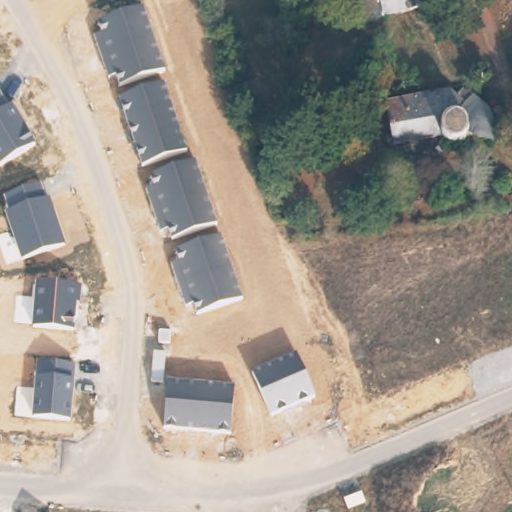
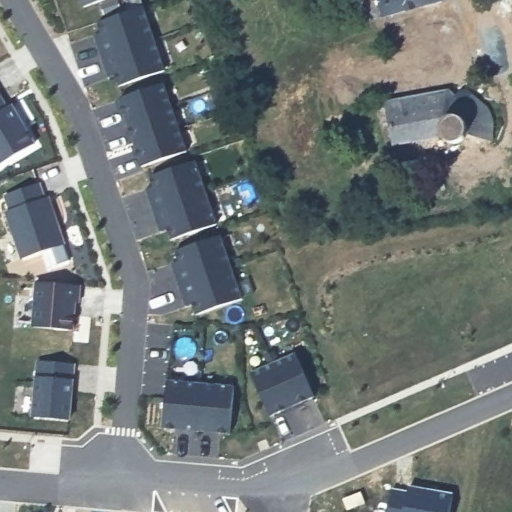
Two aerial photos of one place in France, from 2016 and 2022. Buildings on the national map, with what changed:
unchanged [(82,6),(80,0),(99,0),(82,6)]
unchanged [(358,24),(350,0),(413,0),(415,7),(358,24)]
unchanged [(413,0),(437,0),(415,7),(413,0)]
unchanged [(100,33),(97,25),(145,9),(162,69),(117,85),(114,77),(109,79),(95,36),(100,33)]
unchanged [(469,138),(463,144),(452,145),(441,135),(391,144),(384,98),(451,85),(460,94),(466,82),(475,92),(491,99),(495,138),(469,138)]
unchanged [(164,85),(184,152),(141,166),(120,100),(164,85)]
unchanged [(13,103),(34,143),(0,162),(0,95),(7,107),(13,103)]
unchanged [(154,186),(151,178),(196,162),(215,224),(170,240),(167,230),(160,233),(146,190),(154,186)]
unchanged [(40,182),(46,199),(51,199),(66,243),(21,260),(5,209),(9,207),(5,195),(40,182)]
unchanged [(170,262),(178,259),(176,253),(220,238),(240,299),(196,315),(191,303),(185,307),(170,262)]
unchanged [(36,283),(80,287),(72,329),(32,327),(36,283)]
unchanged [(252,373),(293,354),(313,398),(270,416),(252,373)]
unchanged [(73,365),(70,420),(33,418),(36,363),(73,365)]
unchanged [(169,382),(232,387),(229,435),(161,429),(169,382)]
new [(408,493),(408,487),(454,495),(452,512),(388,512),(392,490),(408,493)]

